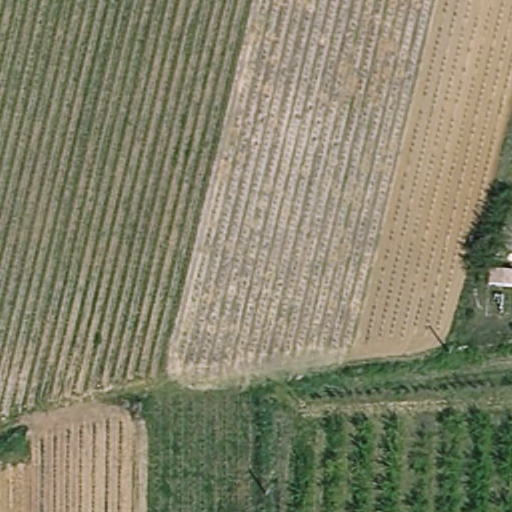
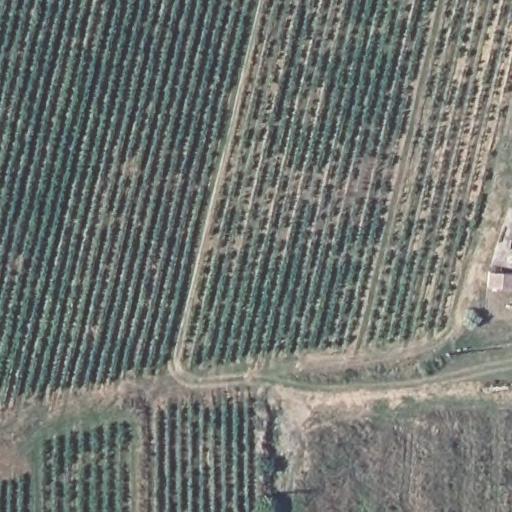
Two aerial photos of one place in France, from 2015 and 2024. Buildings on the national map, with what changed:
unchanged [(510,257),(507,275),(478,271),(483,254),(510,257)]

